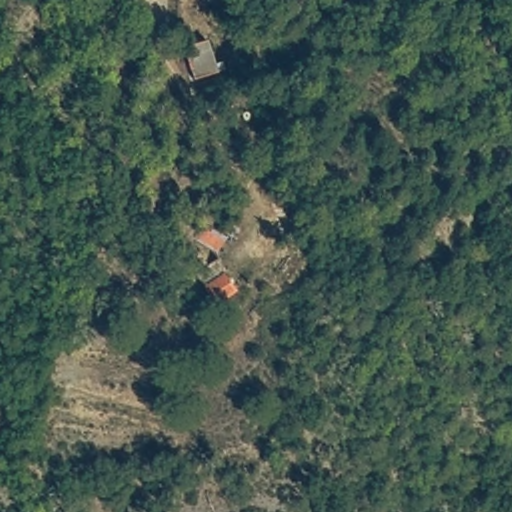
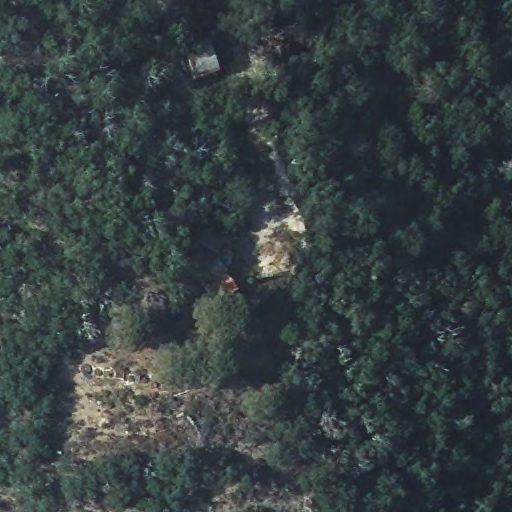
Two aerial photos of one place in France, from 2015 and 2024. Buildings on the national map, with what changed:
unchanged [(216,74),(190,82),(182,50),(206,42),(216,74)]
unchanged [(195,277),(216,262),(234,293),(214,306),(195,277)]

